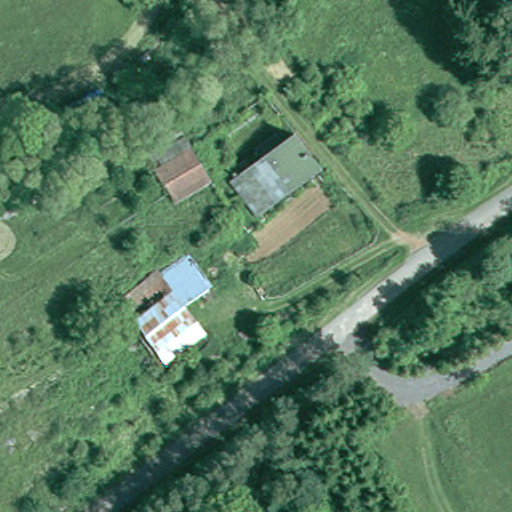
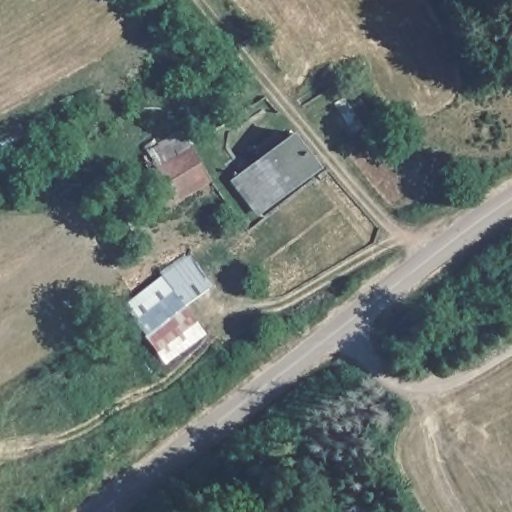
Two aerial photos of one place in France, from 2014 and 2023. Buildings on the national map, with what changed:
unchanged [(313,169),(266,203),(243,171),(289,138),(301,151),(313,169)]
unchanged [(161,173),(195,152),(213,180),(179,201),(161,173)]
unchanged [(192,252),(217,284),(189,309),(202,326),(162,350),(125,293),(192,252)]

